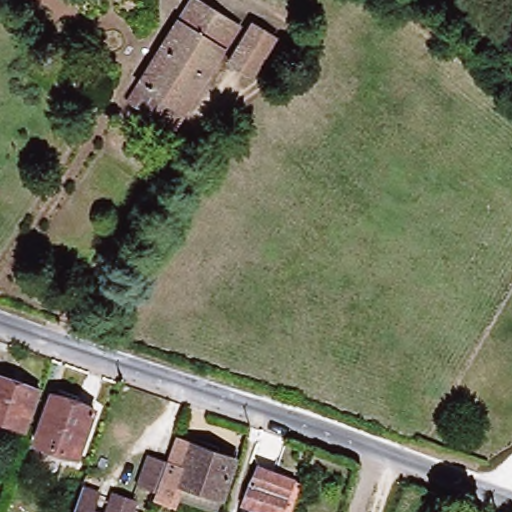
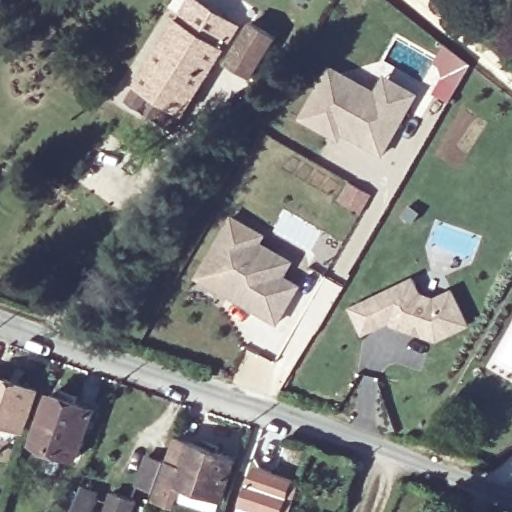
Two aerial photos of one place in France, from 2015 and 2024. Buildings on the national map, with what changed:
unchanged [(191,0),(235,27),(169,135),(122,105),(186,0),(191,0)]
unchanged [(246,81),(223,67),(247,27),(270,42),(246,81)]
new [(435,93),(445,77),(440,65),(435,62),(446,45),(470,65),(450,101),(435,93)]
new [(343,132),(339,141),(301,117),(331,66),(376,91),(385,76),(418,95),(384,156),(343,132)]
new [(265,237),(260,244),(293,263),(284,278),(300,287),(278,323),(200,277),(234,219),(265,237)]
new [(353,310),(431,270),(445,273),(467,323),(438,338),(390,320),(365,330),(353,310)]
unchanged [(25,427),(0,419),(0,378),(37,390),(25,427)]
unchanged [(78,458),(32,442),(51,388),(81,398),(78,407),(94,412),(78,458)]
unchanged [(225,505),(180,489),(177,496),(166,492),(183,446),(239,466),(225,505)]
unchanged [(146,490),(156,460),(171,466),(160,496),(146,490)]
unchanged [(237,504),(250,468),(293,483),(283,512),(261,512),(237,504)]
unchanged [(81,491),(99,497),(95,511),(99,512),(73,512),(81,491)]
unchanged [(115,492),(137,500),(133,512),(108,512),(115,492)]

